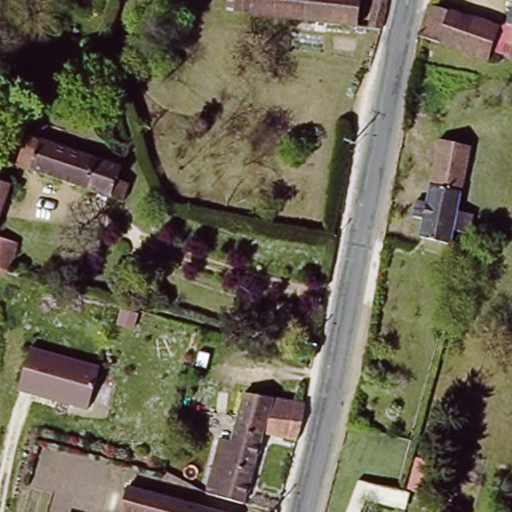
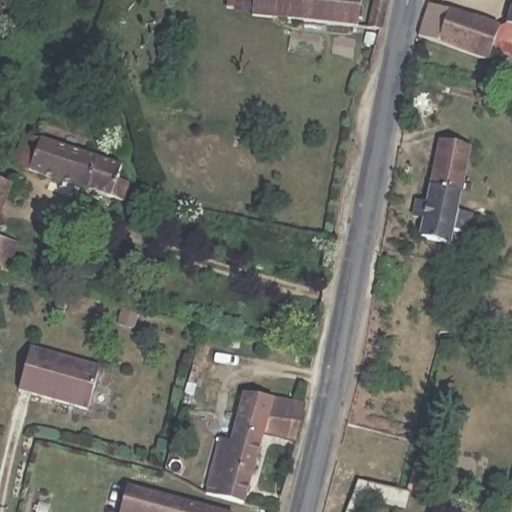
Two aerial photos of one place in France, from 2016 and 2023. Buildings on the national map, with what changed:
unchanged [(251,10),(223,7),(224,0),(252,0),(359,0),(356,26),(250,15),(251,10)]
unchanged [(362,27),(368,0),(382,0),(375,29),(362,27)]
unchanged [(500,23),(507,19),(512,5),(512,50),(492,44),(489,55),(418,30),(428,0),(433,0),(500,23)]
unchanged [(432,91),(427,117),(410,114),(415,88),(432,91)]
unchanged [(453,230),(450,244),(418,237),(422,217),(414,216),(417,200),(425,201),(443,120),(475,127),(457,211),(471,214),(467,232),(453,230)]
unchanged [(48,189),(52,177),(15,165),(25,135),(110,162),(106,176),(118,180),(112,197),(110,196),(61,180),(58,192),(48,189)]
unchanged [(11,192),(0,216),(0,187),(11,192)]
unchanged [(12,250),(5,278),(0,277),(0,246),(12,250)]
unchanged [(101,364),(89,410),(19,390),(32,344),(101,364)]
unchanged [(296,436),(260,432),(242,499),(206,489),(221,435),(232,435),(237,410),(241,391),(305,398),(301,416),(296,436)]
unchanged [(412,491),(407,512),(395,512),(360,503),(357,512),(341,512),(351,473),(412,491)]
unchanged [(128,484),(228,512),(121,512),(128,484)]

